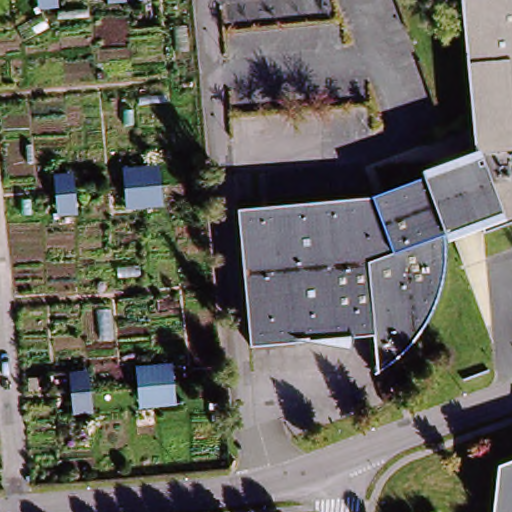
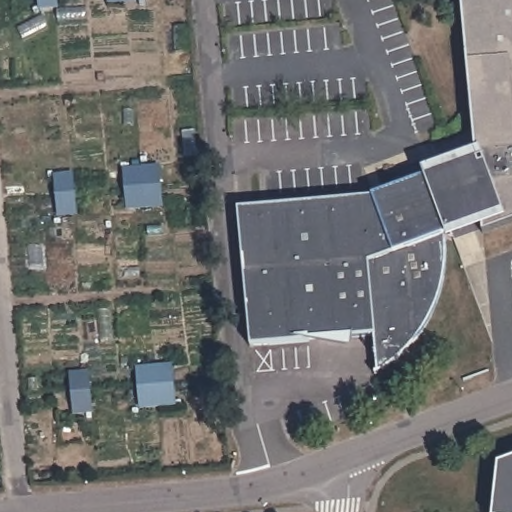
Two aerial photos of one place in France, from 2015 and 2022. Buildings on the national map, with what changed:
unchanged [(45,12),(45,0),(64,0),(65,10),(45,12)]
unchanged [(107,5),(106,0),(143,0),(143,2),(107,5)]
unchanged [(461,0),(512,0),(512,223),(485,235),(484,223),(447,240),(440,209),(439,202),(442,202),(440,194),(437,195),(430,171),(454,163),(476,156),(462,15),(461,0)]
unchanged [(157,169),(161,207),(124,210),(120,172),(157,169)]
unchanged [(430,171),(437,195),(440,194),(442,202),(439,202),(440,209),(447,240),(447,241),(447,254),(447,264),(445,277),(442,288),(437,303),(432,315),(425,326),(415,337),(407,345),(399,353),(389,361),(380,367),(369,372),(367,332),(242,342),(231,204),(283,200),(334,194),(369,192),(372,191),(379,189),(388,185),(430,171)]
unchanged [(79,176),(84,215),(64,217),(60,177),(79,176)]
unchanged [(167,362),(172,404),(137,407),(133,367),(167,362)]
unchanged [(94,373),(99,417),(77,418),(72,377),(94,373)]
unchanged [(512,461),(512,512),(491,512),(497,467),(512,461)]

